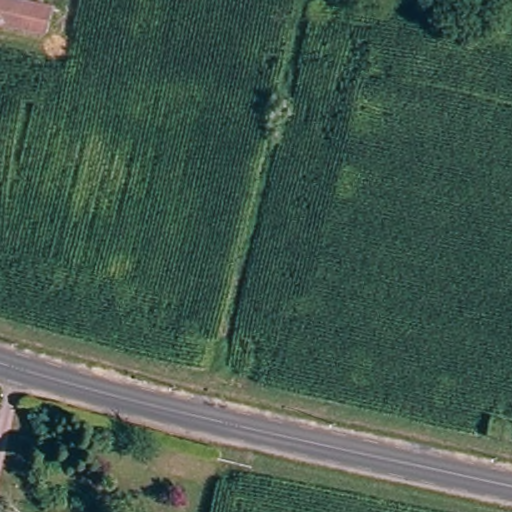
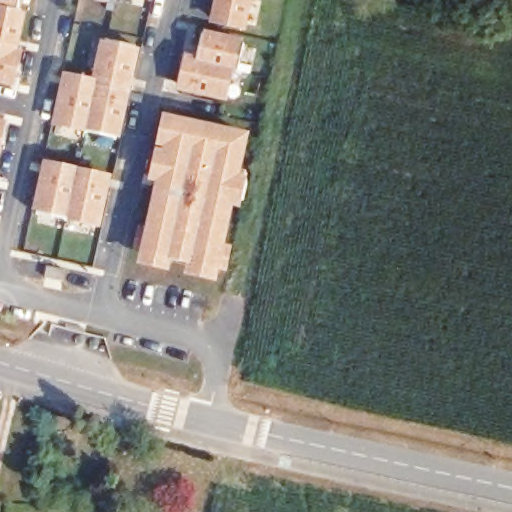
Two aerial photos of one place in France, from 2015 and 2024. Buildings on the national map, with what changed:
demolished [(47,34),(0,22),(0,0),(5,0),(52,12),(47,34)]
new [(21,0),(19,12),(29,15),(20,51),(25,52),(17,86),(0,83),(0,0),(21,0)]
new [(247,0),(241,31),(212,24),(217,0),(247,0)]
demolished [(123,32),(97,26),(100,9),(112,11),(114,1),(128,4),(123,32)]
new [(186,63),(195,65),(200,38),(245,48),(239,74),(232,73),(226,100),(181,91),(186,63)]
new [(54,131),(65,82),(94,88),(104,44),(135,51),(114,144),(113,148),(78,140),(79,136),(54,131)]
new [(215,272),(214,275),(142,259),(143,256),(137,254),(141,235),(147,236),(153,208),(150,207),(153,191),(155,182),(150,180),(155,161),(161,162),(165,148),(159,146),(165,127),(170,129),(171,125),(244,141),(237,173),(245,175),(238,207),(230,205),(219,252),(228,254),(224,274),(215,272)]
new [(1,129),(0,132),(0,129),(1,129)]
new [(46,169),(106,182),(95,234),(69,228),(69,232),(33,224),(34,220),(46,169)]

